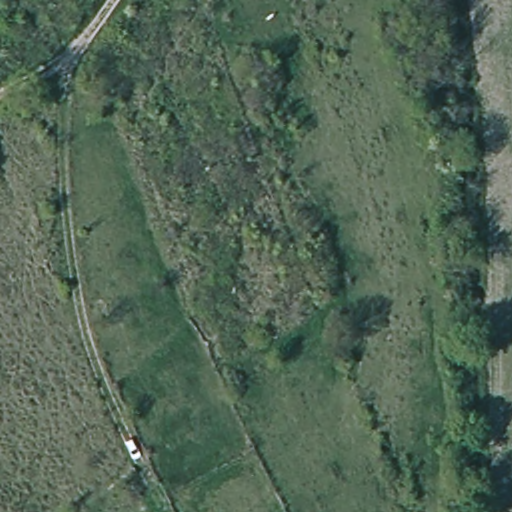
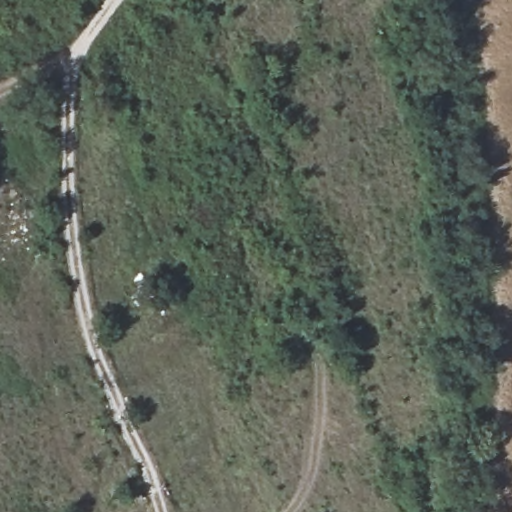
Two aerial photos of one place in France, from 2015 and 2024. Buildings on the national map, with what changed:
[]

